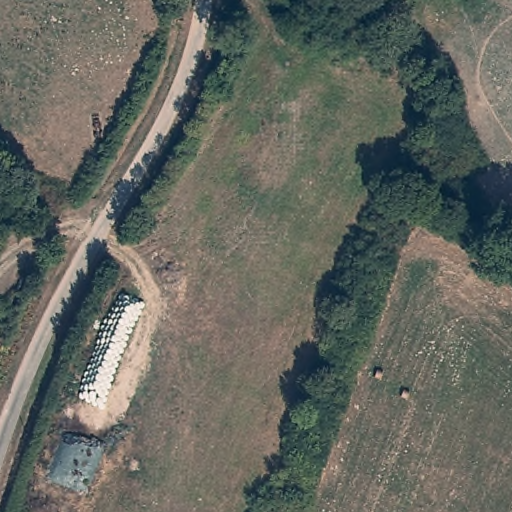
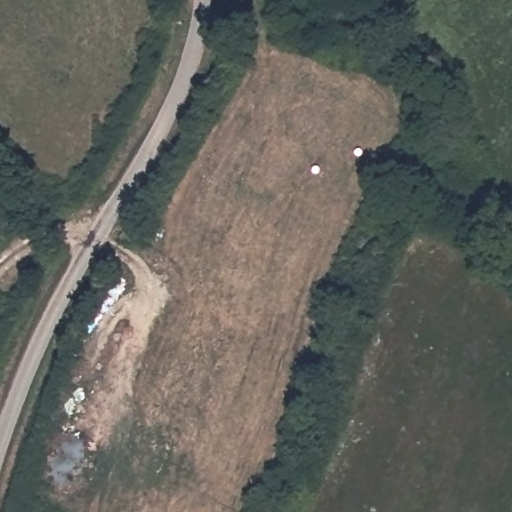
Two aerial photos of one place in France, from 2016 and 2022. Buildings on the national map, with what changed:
[]

